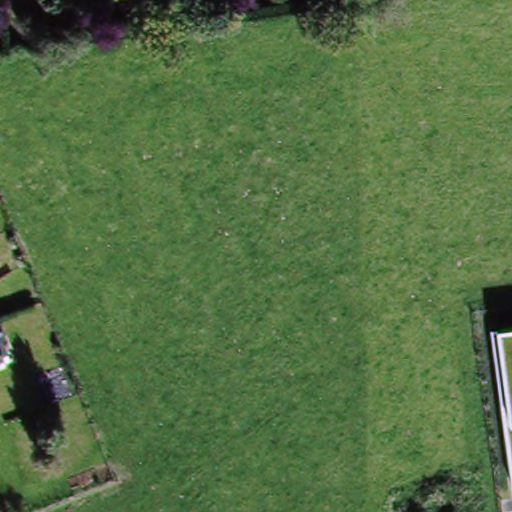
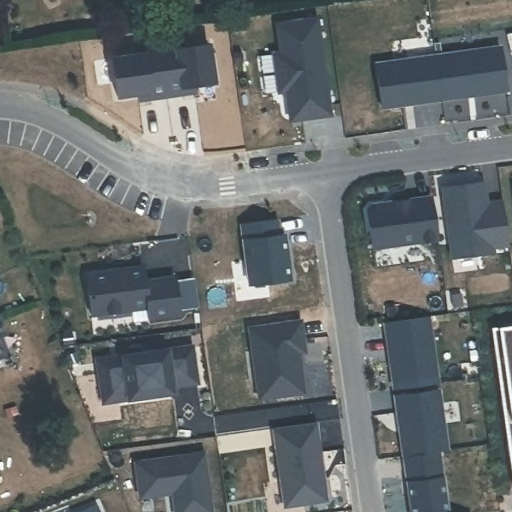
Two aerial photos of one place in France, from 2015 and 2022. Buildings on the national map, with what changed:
new [(291,110),(289,93),(281,94),(276,56),(283,55),(280,26),(320,20),(333,116),(305,120),(293,122),(291,110)]
new [(438,57),(503,49),(510,92),(445,101),(438,57)]
new [(445,101),(385,110),(379,66),(438,57),(445,101)]
new [(483,180),(487,205),(502,203),(508,244),(492,246),(493,249),(457,255),(452,223),(447,223),(442,186),(483,180)]
new [(441,240),(376,250),(370,211),(374,207),(435,198),(441,240)]
new [(239,222),(275,215),(276,232),(282,232),(287,276),(245,281),(239,222)]
new [(145,283),(175,279),(180,316),(149,320),(147,310),(91,317),(86,276),(143,269),(145,283)]
new [(427,318),(436,377),(393,383),(385,324),(427,318)]
unchanged [(7,338),(0,342),(0,322),(7,338)]
new [(304,353),(297,354),(303,394),(273,398),(270,380),(255,383),(249,330),(300,322),(302,340),(304,353)]
unchanged [(512,325),(512,478),(491,328),(512,325)]
new [(197,385),(173,387),(174,395),(104,405),(97,361),(192,348),(197,385)]
unchanged [(5,360),(0,362),(0,351),(5,360)]
new [(438,391),(446,451),(403,457),(395,397),(438,391)]
new [(326,501),(285,507),(274,430),(312,424),(316,453),(320,453),(326,501)]
new [(411,512),(403,457),(438,452),(447,512),(411,512)]
new [(213,512),(175,512),(172,495),(140,496),(135,463),(206,457),(213,512)]
new [(97,512),(90,512),(96,510),(97,512)]

